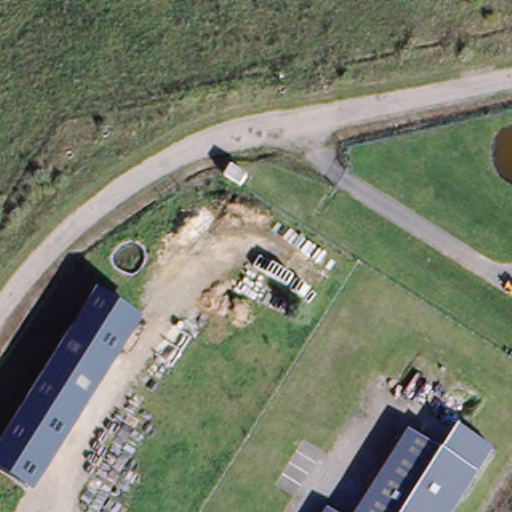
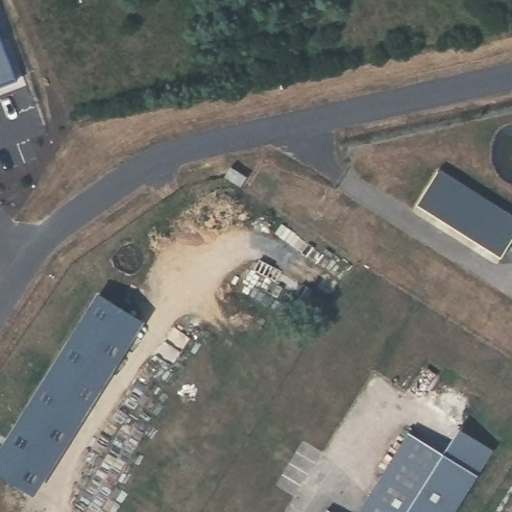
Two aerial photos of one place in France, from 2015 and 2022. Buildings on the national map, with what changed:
new [(22,82),(0,89),(0,28),(22,82)]
new [(512,220),(512,245),(502,261),(416,206),(437,173),(512,220)]
unchanged [(0,473),(0,448),(97,293),(145,323),(35,498),(0,473)]
unchanged [(462,425),(500,450),(460,512),(363,512),(411,431),(447,449),(462,425)]
unchanged [(333,512),(331,512),(332,511),(333,512)]

